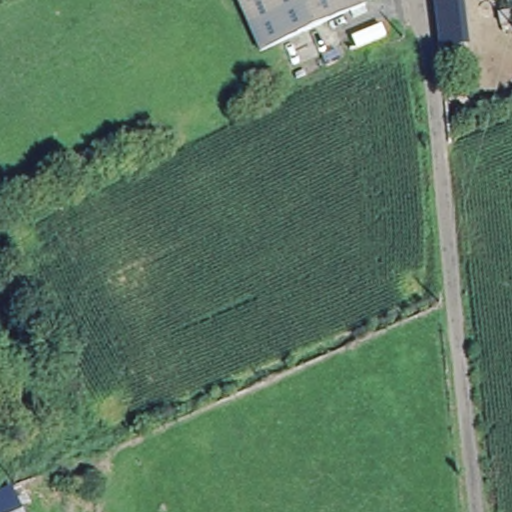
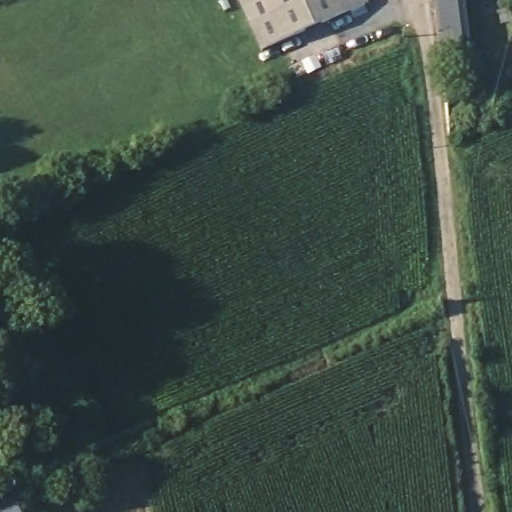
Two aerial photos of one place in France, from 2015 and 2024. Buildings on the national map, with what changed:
unchanged [(261,47),(242,0),(367,0),(261,47)]
unchanged [(436,0),(462,0),(470,45),(443,50),(436,0)]
unchanged [(21,512),(0,512),(0,496),(12,490),(21,512)]

